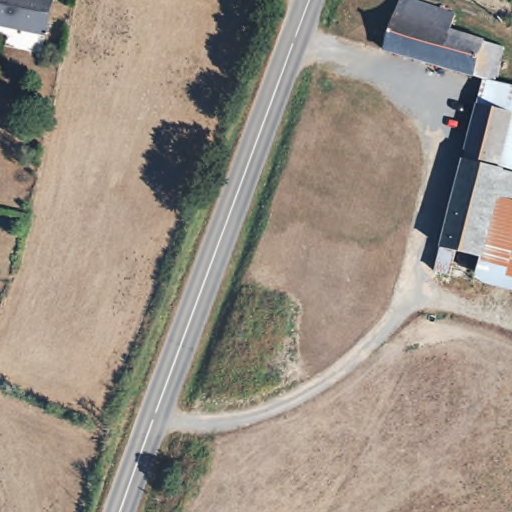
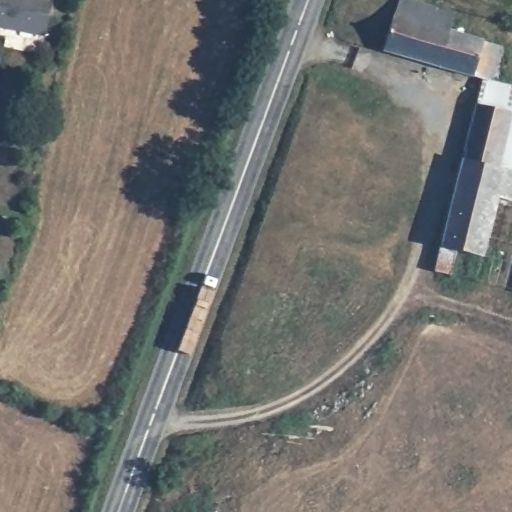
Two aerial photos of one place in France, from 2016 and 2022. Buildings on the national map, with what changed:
unchanged [(51,0),(44,36),(0,27),(0,0),(51,0)]
unchanged [(386,51),(402,0),(409,0),(455,15),(450,31),(502,46),(493,83),(483,81),(386,51)]
unchanged [(493,83),(512,87),(512,113),(478,104),(483,81),(493,83)]
unchanged [(512,200),(457,187),(478,104),(512,113),(512,200)]
unchanged [(512,248),(509,264),(442,248),(457,187),(512,200),(512,248)]
unchanged [(512,264),(512,290),(436,272),(442,248),(509,264),(512,264)]
unchanged [(512,264),(509,264),(512,248),(512,264)]

